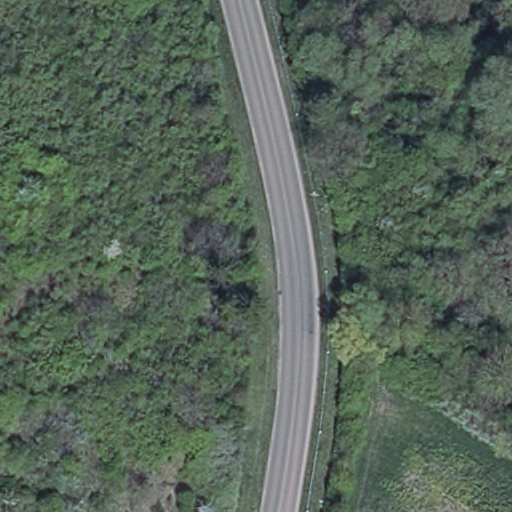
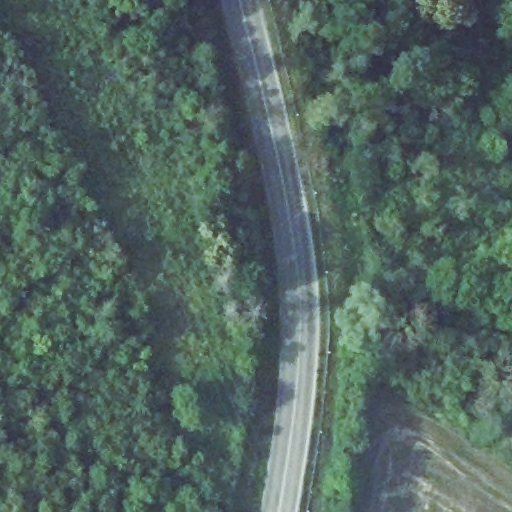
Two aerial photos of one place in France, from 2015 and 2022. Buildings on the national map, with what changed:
unchanged [(240,254),(239,271),(225,272),(224,254),(240,254)]

